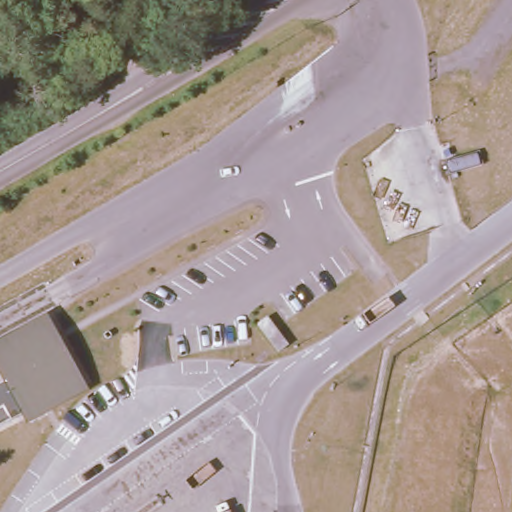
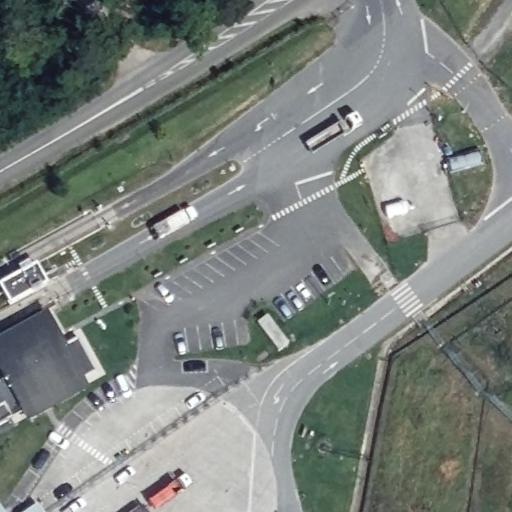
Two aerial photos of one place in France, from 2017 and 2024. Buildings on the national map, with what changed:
new [(0,284),(36,264),(47,285),(9,305),(0,289),(0,284)]
unchanged [(90,389),(27,422),(0,374),(0,339),(46,314),(90,389)]
unchanged [(0,425),(0,383),(4,381),(22,414),(0,425)]

